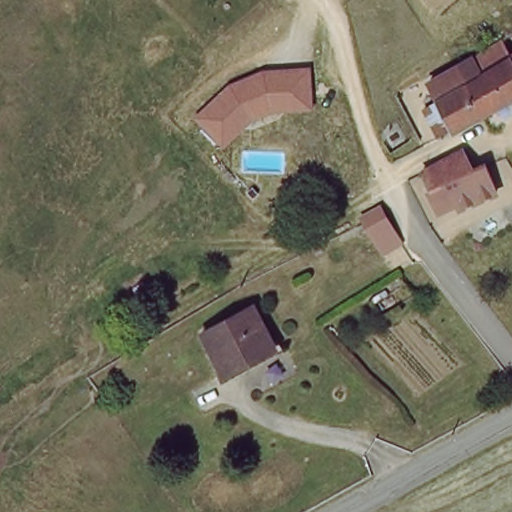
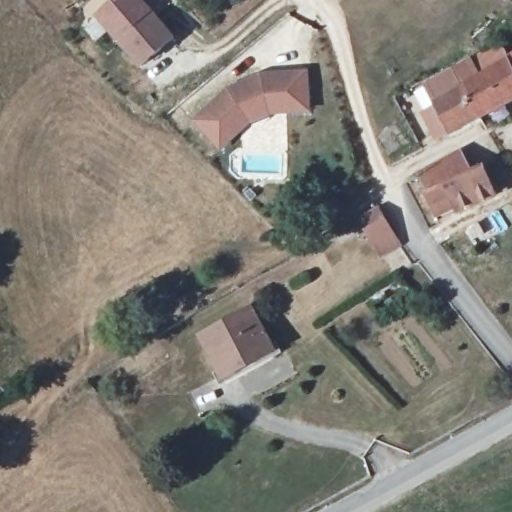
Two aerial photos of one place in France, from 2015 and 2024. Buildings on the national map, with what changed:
new [(112,0),(144,0),(178,38),(143,69),(95,16),(112,0)]
unchanged [(505,56),(512,52),(512,96),(473,115),(447,70),(494,40),(505,56)]
unchanged [(442,130),(434,135),(418,110),(430,102),(423,85),(447,70),(473,115),(442,130)]
unchanged [(252,119),(240,130),(223,145),(198,117),(232,87),(266,74),(310,72),(312,110),(289,110),(273,111),(252,119)]
unchanged [(463,155),(474,175),(486,172),(496,197),(460,215),(453,204),(439,210),(421,180),(463,155)]
unchanged [(398,230),(381,240),(369,221),(387,210),(398,230)]
unchanged [(257,308),(279,348),(229,377),(206,336),(257,308)]

